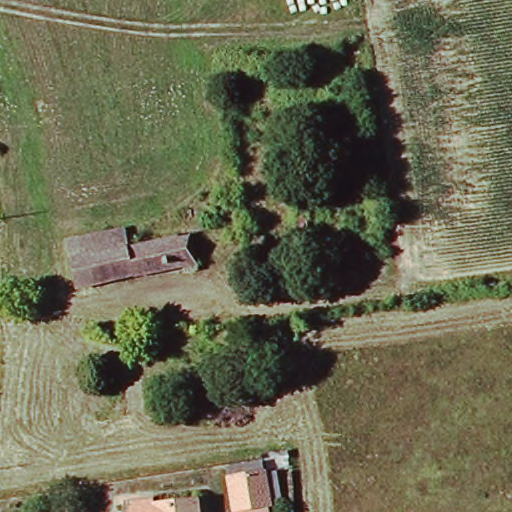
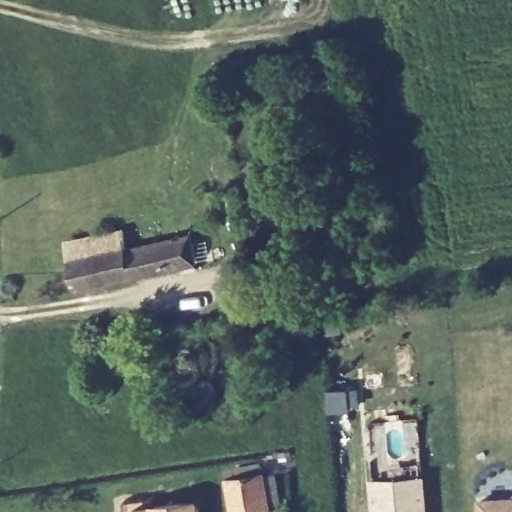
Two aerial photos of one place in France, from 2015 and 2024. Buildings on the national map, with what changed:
unchanged [(83,287),(74,239),(125,228),(128,245),(197,231),(202,263),(83,287)]
unchanged [(272,499),(237,506),(231,476),(267,470),(272,499)]
new [(423,476),(425,512),(375,512),(373,479),(423,476)]
new [(512,497),(512,512),(480,512),(479,499),(512,497)]
unchanged [(139,508),(202,503),(202,512),(139,512),(139,508)]

